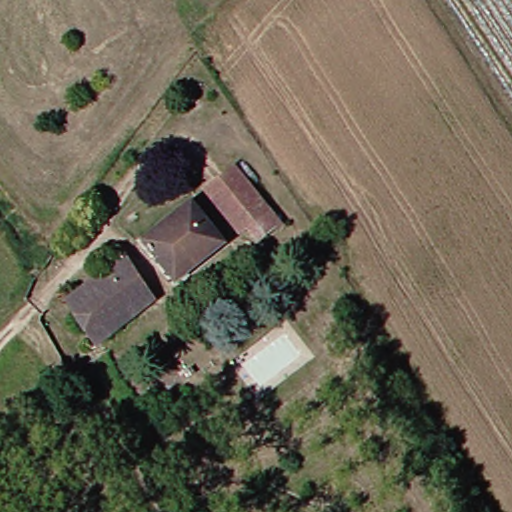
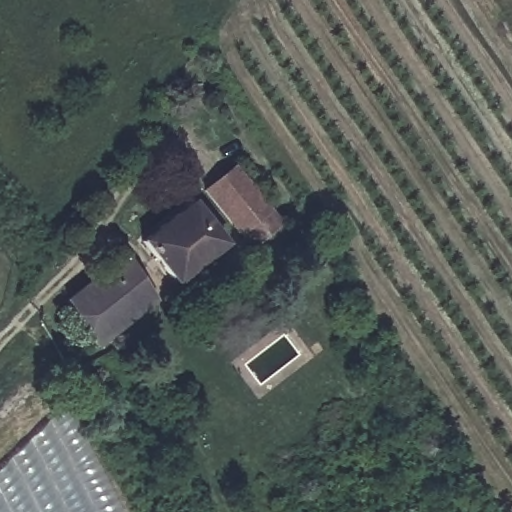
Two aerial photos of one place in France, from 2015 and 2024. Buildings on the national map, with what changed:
unchanged [(283,227),(260,243),(252,233),(244,240),(210,192),(239,169),(283,227)]
unchanged [(233,244),(181,288),(145,244),(198,203),(233,244)]
unchanged [(104,362),(93,348),(99,343),(69,300),(126,255),(141,275),(160,301),(143,314),(109,343),(115,353),(104,362)]
new [(120,512),(0,512),(0,467),(64,403),(120,512)]

